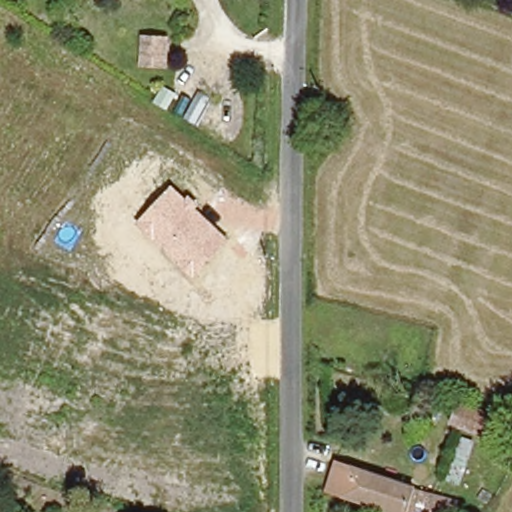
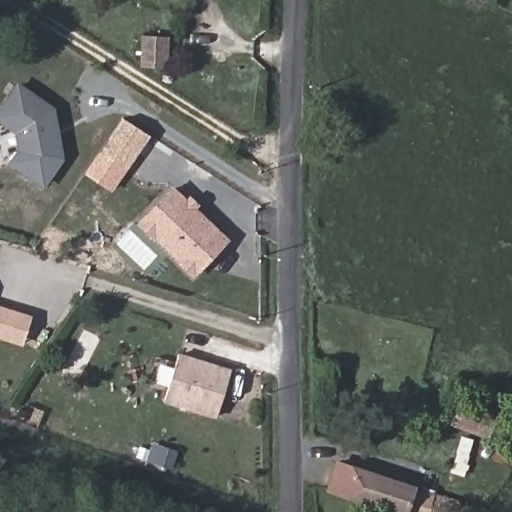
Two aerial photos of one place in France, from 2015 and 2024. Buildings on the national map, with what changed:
unchanged [(140,65),(143,36),(167,39),(164,68),(140,65)]
new [(17,148),(14,134),(0,123),(0,107),(17,82),(52,108),(63,160),(44,187),(7,164),(17,148)]
new [(113,194),(85,175),(124,119),(152,138),(113,194)]
unchanged [(228,240),(194,278),(135,222),(170,185),(228,240)]
new [(0,306),(33,315),(22,346),(0,339),(0,306)]
new [(178,353),(231,368),(216,417),(164,403),(178,353)]
unchanged [(462,400),(496,413),(488,433),(454,421),(462,400)]
unchanged [(459,501),(455,512),(403,512),(323,486),(332,459),(459,501)]

